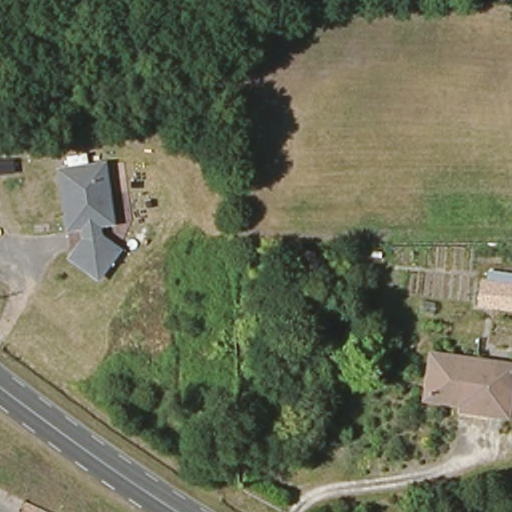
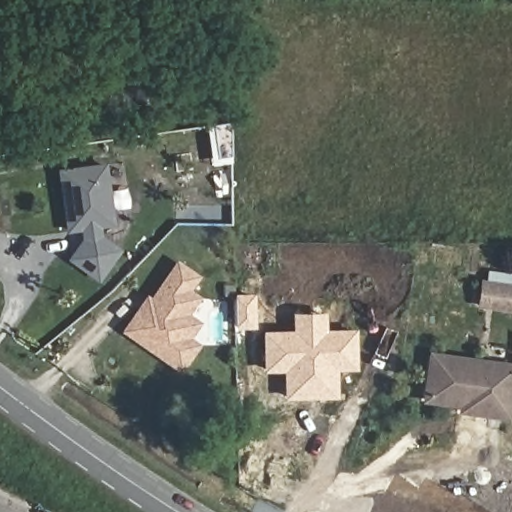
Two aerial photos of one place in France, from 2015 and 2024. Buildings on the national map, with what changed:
unchanged [(111,220),(96,223),(98,235),(115,250),(116,250),(94,277),(68,255),(74,250),(84,237),(82,225),(67,227),(58,170),(102,162),(111,220)]
new [(182,339),(192,345),(176,369),(120,331),(136,308),(142,300),(146,303),(171,265),(190,277),(181,291),(191,298),(180,315),(193,323),(182,339)]
unchanged [(512,273),(512,311),(475,305),(480,270),(512,273)]
new [(326,312),(327,330),(356,329),(357,370),(338,371),(338,398),(284,399),(283,372),(263,372),(262,330),(292,330),(292,313),(326,312)]
unchanged [(512,363),(512,374),(506,415),(461,410),(461,402),(427,396),(431,353),(512,363)]

